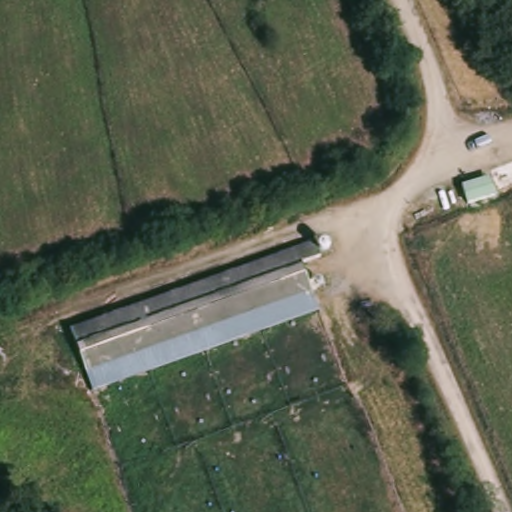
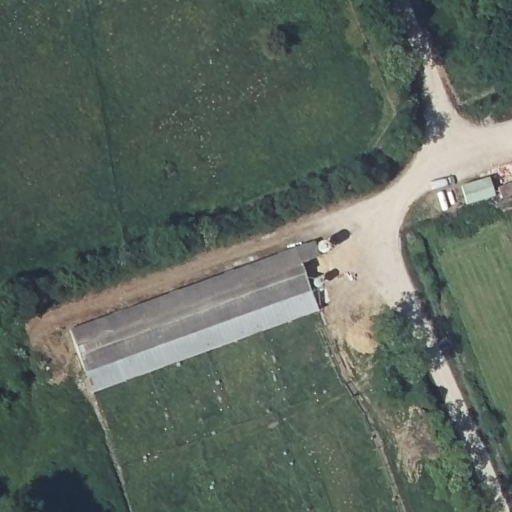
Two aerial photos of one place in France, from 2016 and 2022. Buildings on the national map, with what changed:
unchanged [(83,376),(67,337),(312,244),(316,256),(303,260),(314,288),(83,376)]

